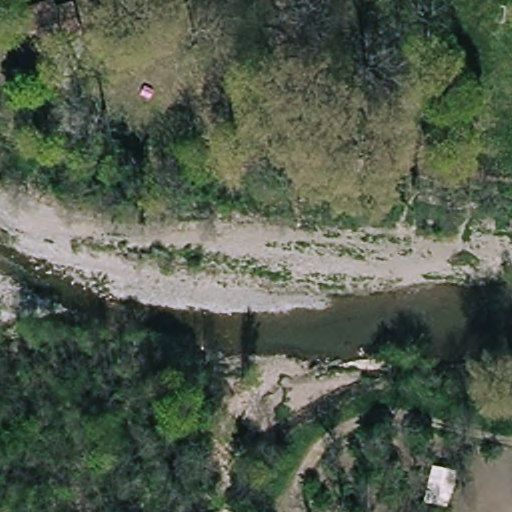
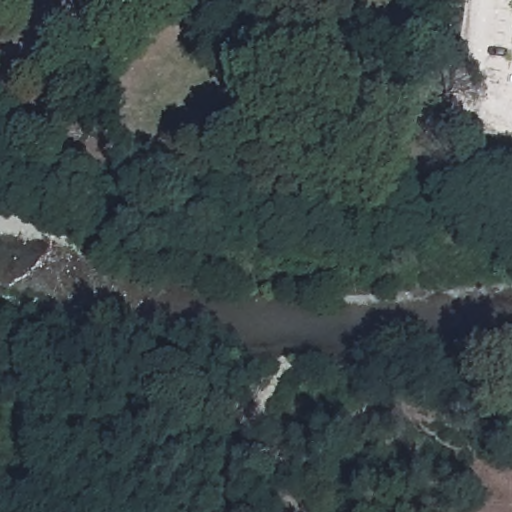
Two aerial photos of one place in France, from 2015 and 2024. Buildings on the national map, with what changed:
unchanged [(29,49),(25,37),(43,31),(39,21),(40,18),(41,16),(58,8),(61,9),(62,11),(66,21),(83,15),(93,43),(62,53),(65,59),(29,70),(22,51),(29,49)]

